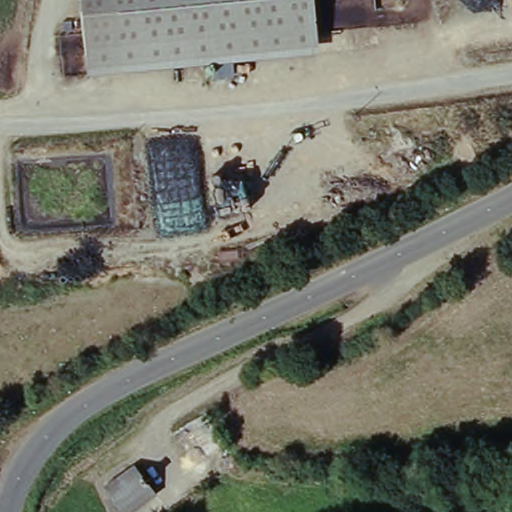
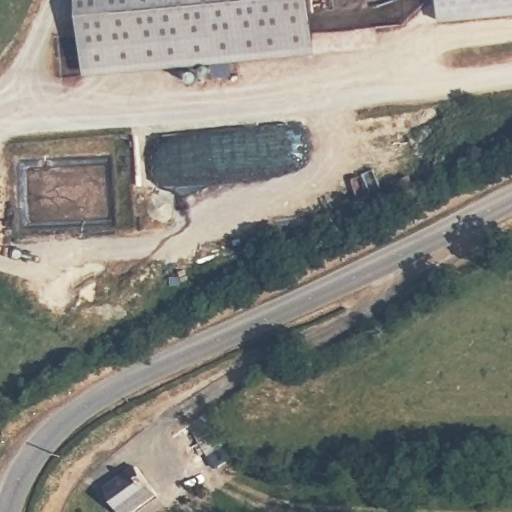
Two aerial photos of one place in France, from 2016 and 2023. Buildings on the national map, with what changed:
unchanged [(76,0),(120,0),(121,10),(245,0),(307,0),(312,58),(82,77),(76,0)]
unchanged [(121,10),(120,0),(245,0),(121,10)]
new [(512,16),(445,23),(442,0),(512,0),(512,16)]
unchanged [(222,442),(227,447),(207,457),(187,425),(204,413),(222,442)]
unchanged [(155,502),(138,512),(120,512),(104,485),(132,465),(155,502)]

